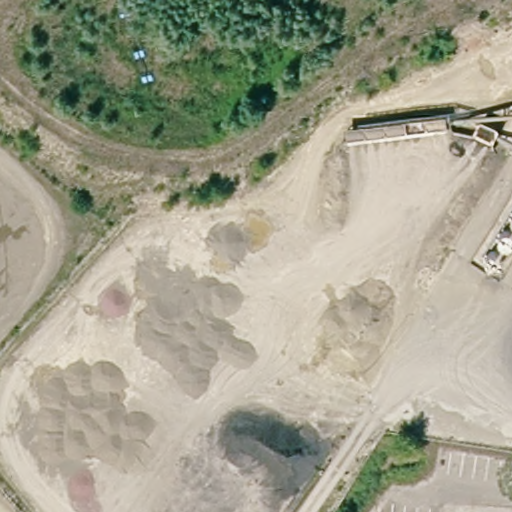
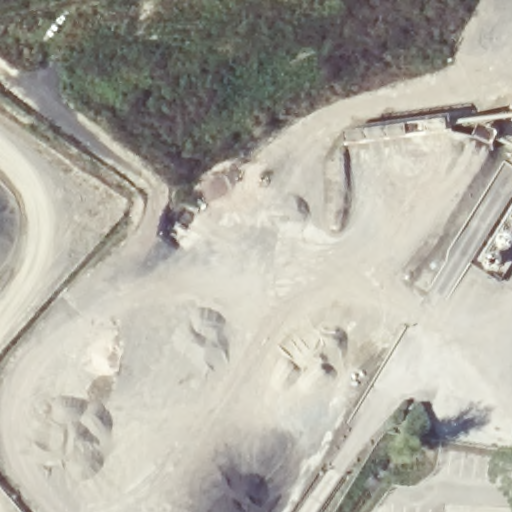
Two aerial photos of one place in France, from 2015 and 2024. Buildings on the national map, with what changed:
unchanged [(512,248),(500,269),(485,264),(512,217),(512,248)]

